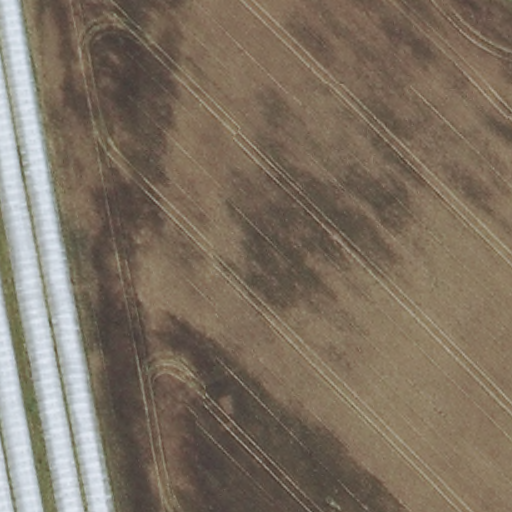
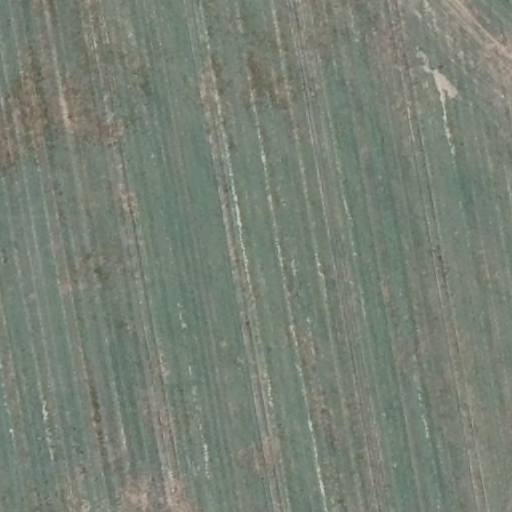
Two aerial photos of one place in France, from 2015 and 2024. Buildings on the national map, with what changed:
demolished [(0,512),(0,0),(9,0),(101,512),(0,512)]

